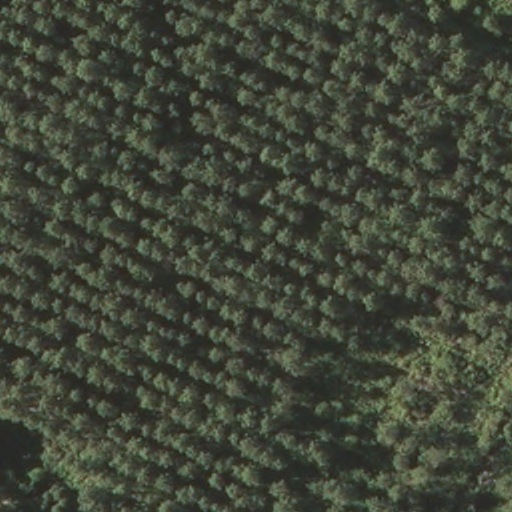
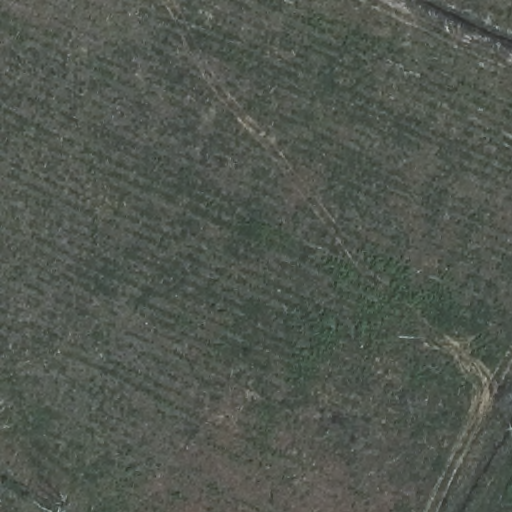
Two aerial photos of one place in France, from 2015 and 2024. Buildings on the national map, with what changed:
[]

